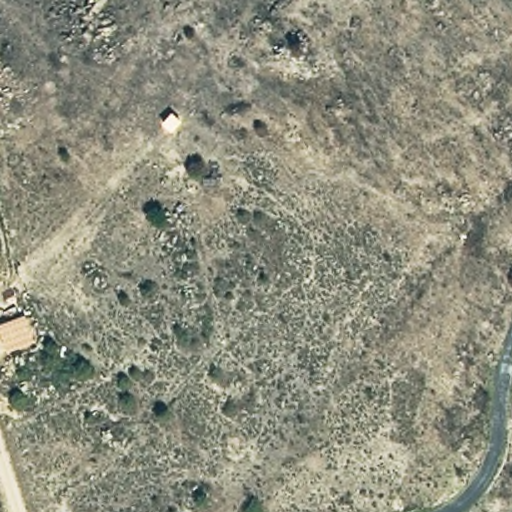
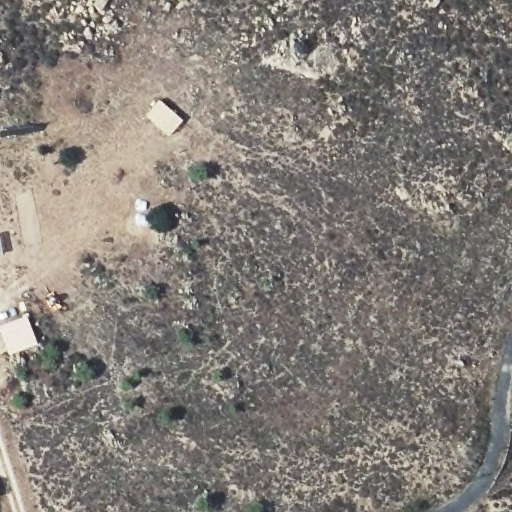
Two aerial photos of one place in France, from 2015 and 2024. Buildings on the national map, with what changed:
unchanged [(25,317),(37,346),(10,355),(0,331),(0,327),(25,317)]

